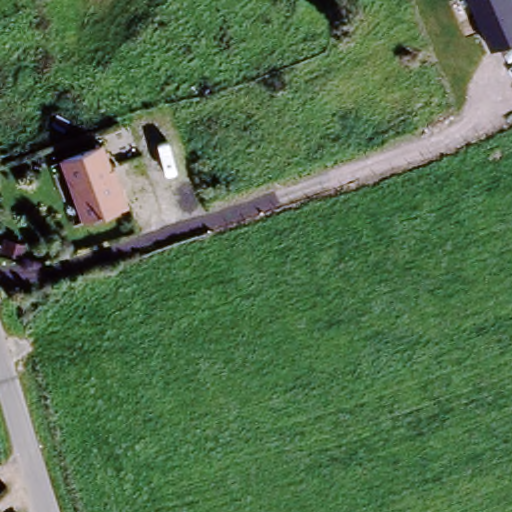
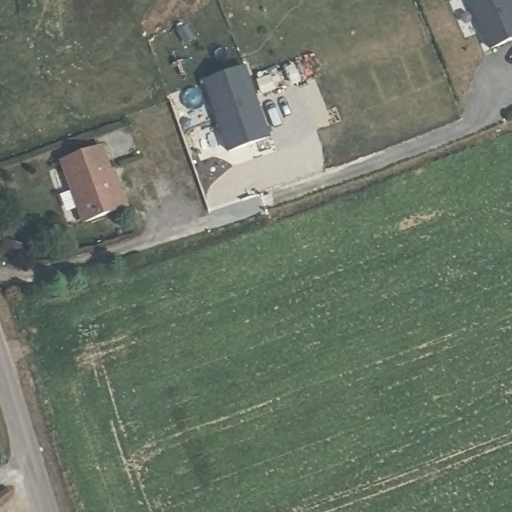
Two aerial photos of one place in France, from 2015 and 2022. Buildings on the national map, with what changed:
unchanged [(491,50),(471,0),(512,0),(512,40),(491,50)]
new [(247,62),(271,135),(220,150),(205,76),(247,62)]
unchanged [(106,151),(127,214),(82,229),(61,167),(106,151)]

